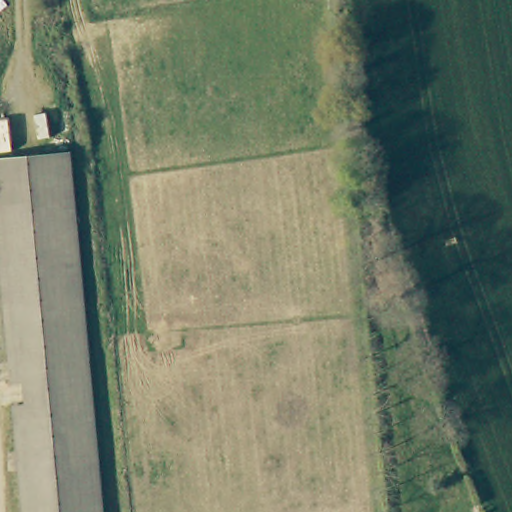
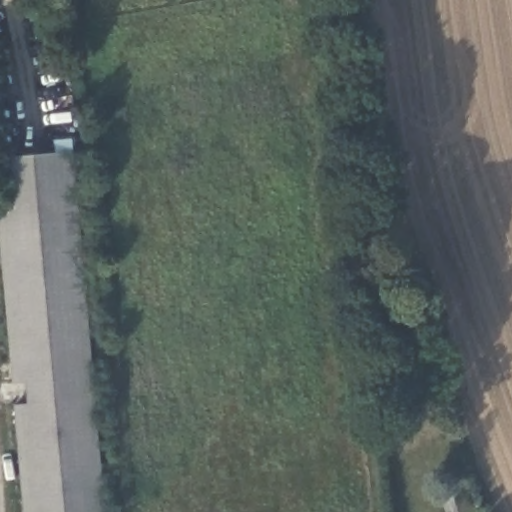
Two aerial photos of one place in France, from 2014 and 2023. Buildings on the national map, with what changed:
unchanged [(0,214),(0,155),(72,151),(107,512),(25,512),(0,214)]

